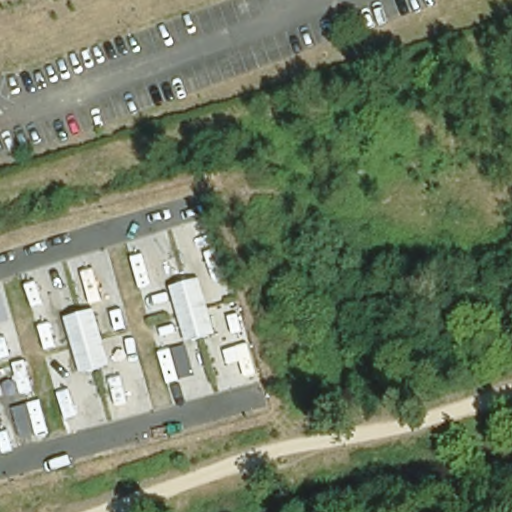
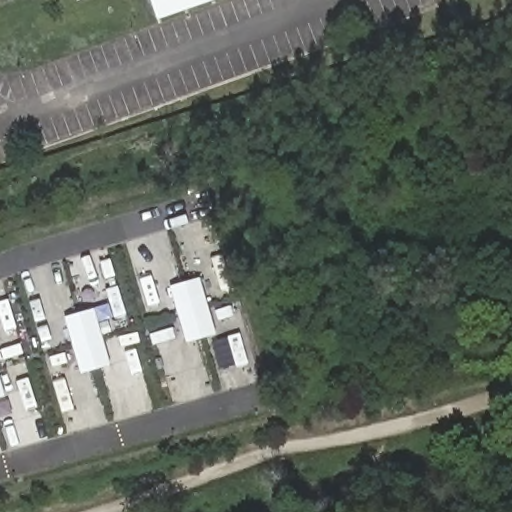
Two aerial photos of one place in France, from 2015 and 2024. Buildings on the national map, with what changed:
new [(156,17),(149,0),(206,0),(156,17)]
unchanged [(200,278),(217,335),(186,343),(170,286),(200,278)]
unchanged [(94,310),(111,365),(80,374),(65,317),(94,310)]
unchanged [(0,397),(0,382),(4,396),(0,397)]

